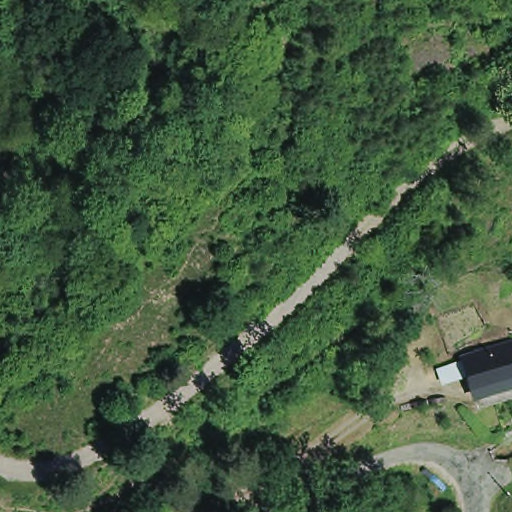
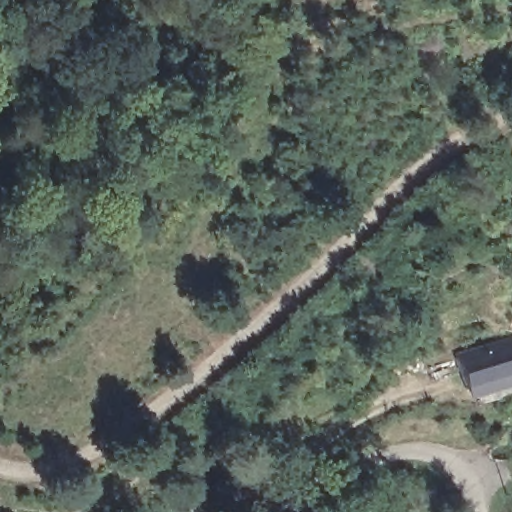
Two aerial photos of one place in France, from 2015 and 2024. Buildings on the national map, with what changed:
unchanged [(454,367),(512,350),(512,351),(512,384),(464,399),(454,367)]

